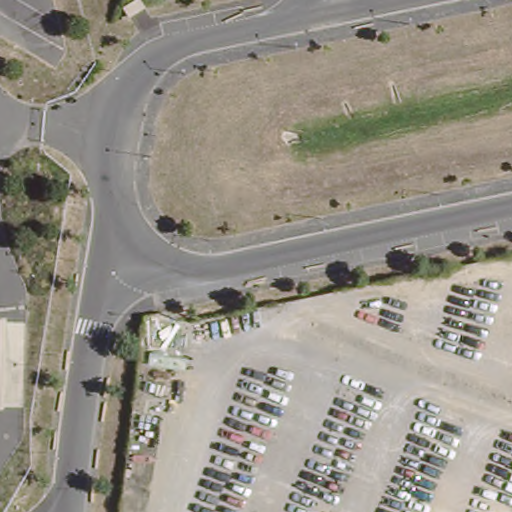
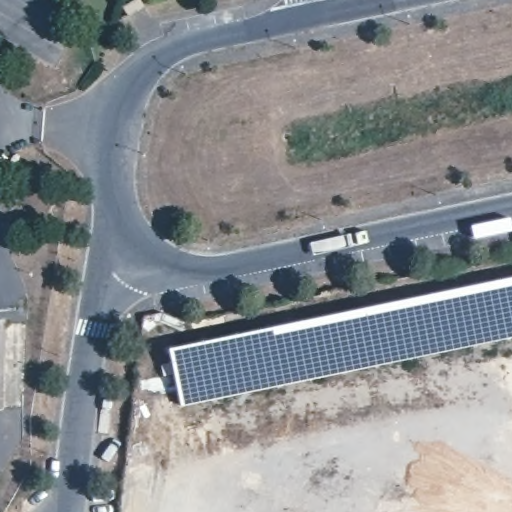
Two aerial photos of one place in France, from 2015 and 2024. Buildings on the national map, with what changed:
new [(170,349),(512,279),(512,338),(182,405),(170,349)]

